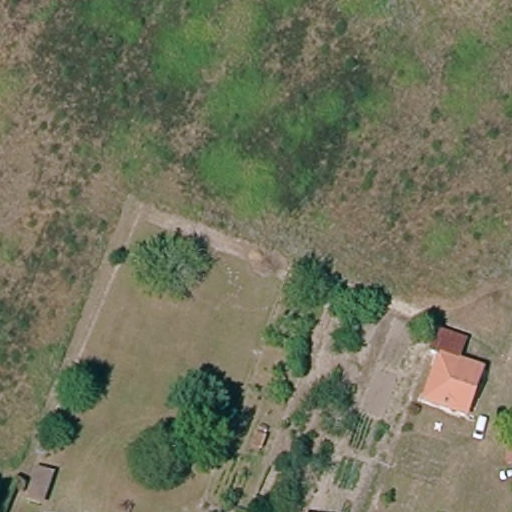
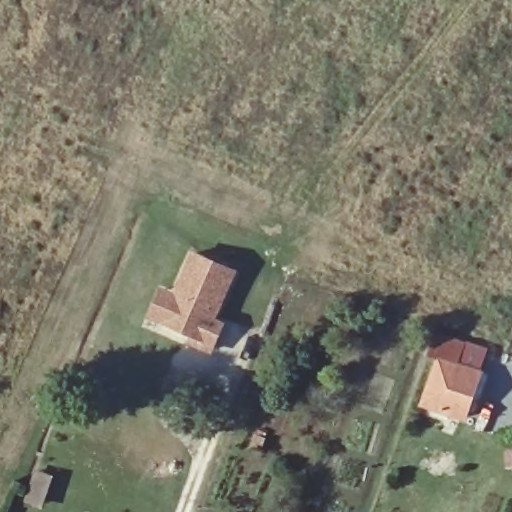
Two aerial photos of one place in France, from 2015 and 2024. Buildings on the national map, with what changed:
new [(163,319),(149,313),(161,287),(174,294),(194,252),(234,270),(212,318),(221,323),(209,349),(199,344),(189,339),(192,333),(163,319)]
unchanged [(426,356),(422,355),(428,339),(464,351),(458,368),(484,377),(470,419),(427,404),(412,399),(426,356)]

